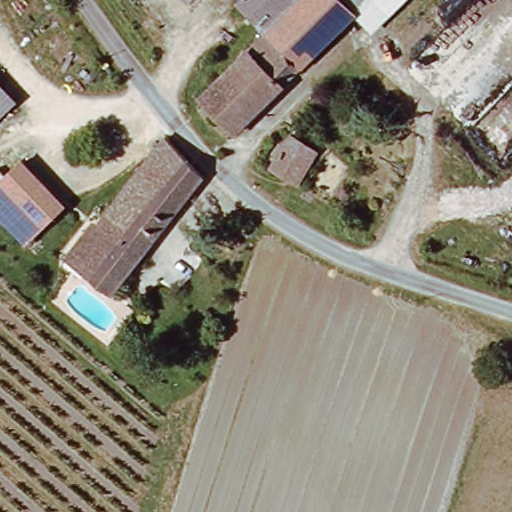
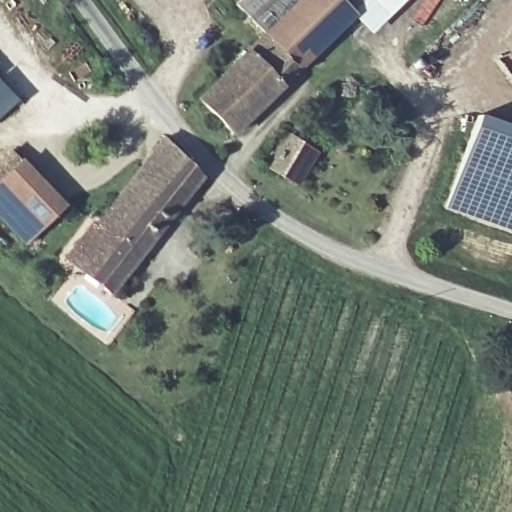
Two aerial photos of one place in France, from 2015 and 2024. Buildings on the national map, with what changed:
unchanged [(203,96),(262,33),(235,3),(238,0),(346,0),(356,9),(237,130),(203,96)]
unchanged [(346,0),(381,0),(364,17),(356,9),(346,0)]
unchanged [(364,17),(381,0),(407,0),(377,29),(364,17)]
unchanged [(0,115),(0,95),(10,105),(0,115)]
new [(512,126),(512,234),(446,210),(479,115),(512,126)]
unchanged [(310,157),(289,188),(258,164),(271,144),(281,150),(287,141),(310,157)]
unchanged [(60,257),(72,241),(85,224),(92,230),(159,144),(177,159),(201,178),(132,265),(108,295),(79,272),(70,264),(60,257)]
unchanged [(18,244),(0,224),(0,178),(12,165),(55,210),(18,244)]

